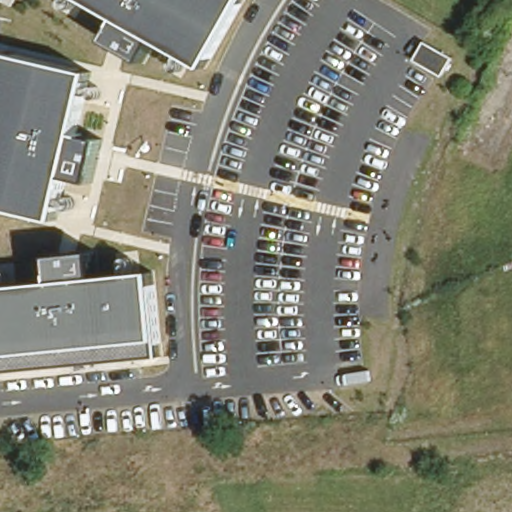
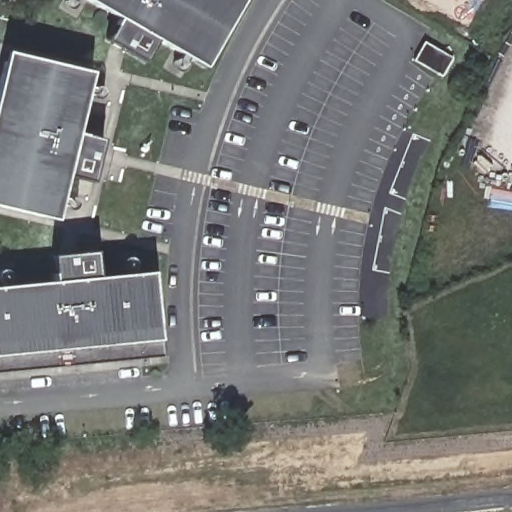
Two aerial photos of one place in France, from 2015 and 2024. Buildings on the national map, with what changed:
unchanged [(159,39),(146,59),(110,38),(121,17),(91,0),(244,0),(206,68),(159,39)]
unchanged [(456,58),(443,78),(416,61),(427,40),(456,58)]
unchanged [(103,139),(94,180),(68,175),(57,219),(0,206),(0,83),(8,51),(94,71),(78,134),(103,139)]
unchanged [(54,256),(96,252),(100,277),(154,272),(161,339),(163,356),(0,372),(0,286),(56,281),(54,256)]

